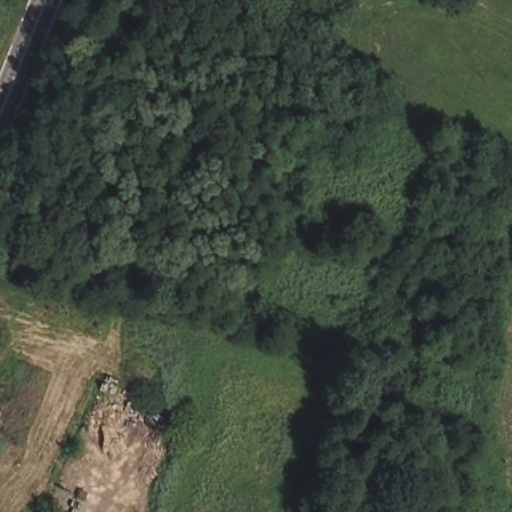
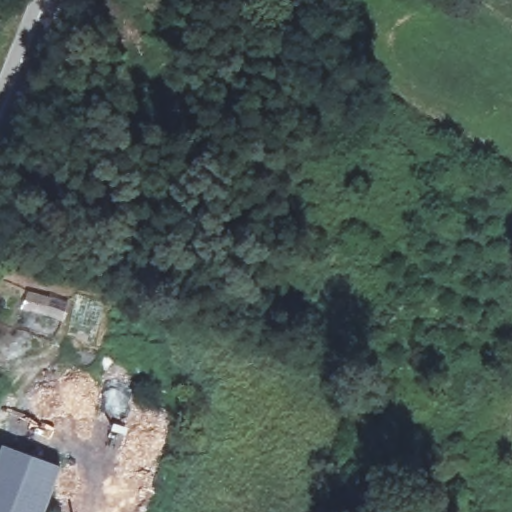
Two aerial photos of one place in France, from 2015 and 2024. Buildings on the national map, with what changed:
new [(2,446),(60,467),(43,512),(0,512),(0,449),(2,446)]

